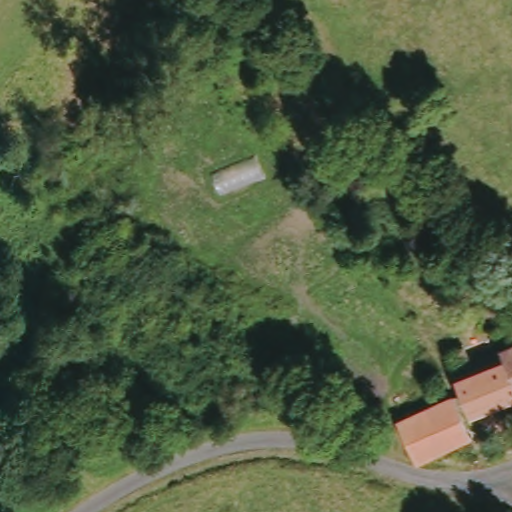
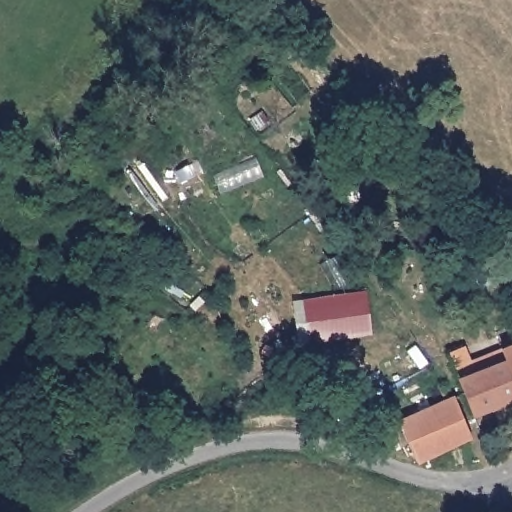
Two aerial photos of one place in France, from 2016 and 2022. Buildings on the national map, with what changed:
new [(309,343),(303,300),(366,291),(372,334),(309,343)]
unchanged [(476,413),(462,386),(505,367),(499,353),(512,347),(512,399),(476,413)]
unchanged [(422,409),(452,396),(473,440),(443,454),(422,409)]
unchanged [(396,422),(422,409),(443,454),(418,465),(396,422)]

